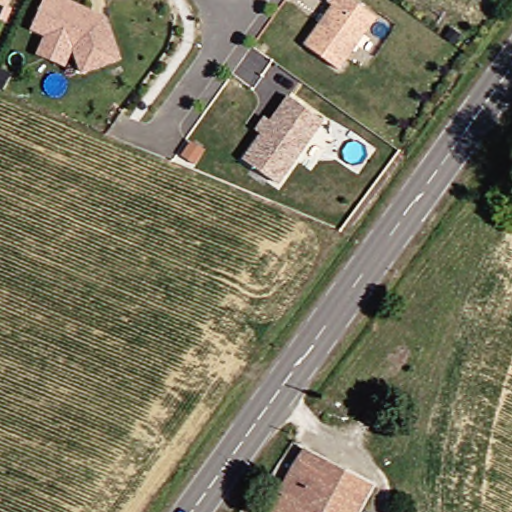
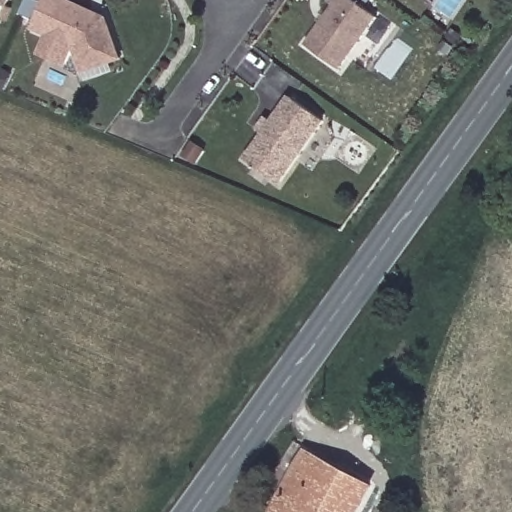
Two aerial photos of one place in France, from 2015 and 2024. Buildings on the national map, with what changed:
unchanged [(4,5),(0,3),(0,0),(7,0),(4,5)]
unchanged [(119,63),(81,76),(71,51),(30,32),(45,0),(64,0),(62,3),(90,15),(103,21),(104,22),(119,63)]
unchanged [(338,69),(303,44),(331,5),(326,2),(328,0),(351,0),(375,17),(338,69)]
unchanged [(243,159),(261,134),(255,130),(264,118),(270,122),(288,97),(321,121),(276,183),(243,159)]
unchanged [(272,512),(296,467),(304,450),(345,472),(370,485),(356,512),(272,512)]

